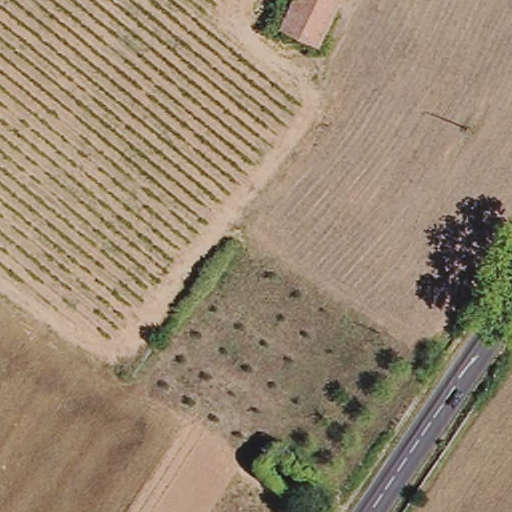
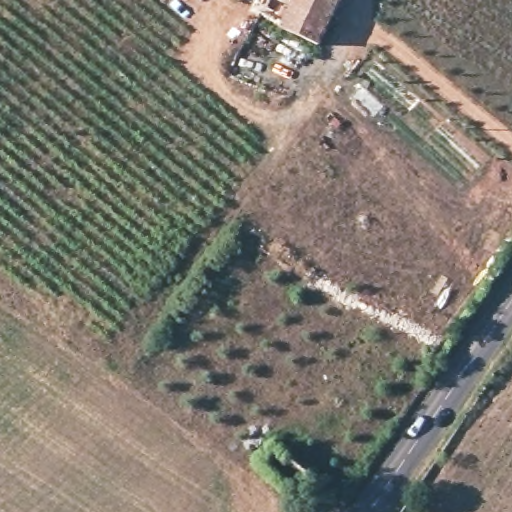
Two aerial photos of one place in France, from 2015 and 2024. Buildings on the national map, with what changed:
unchanged [(325,38),(286,24),(294,0),(339,0),(325,38)]

